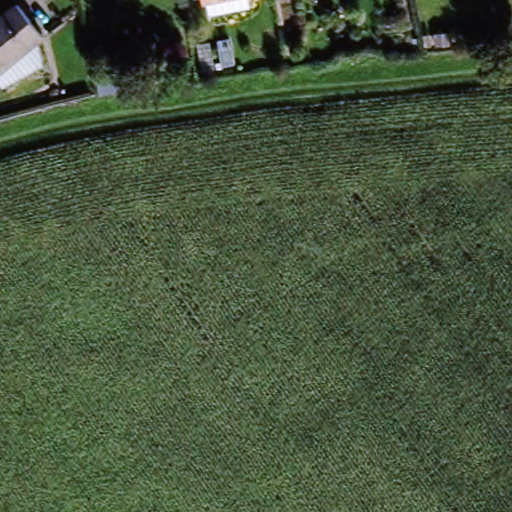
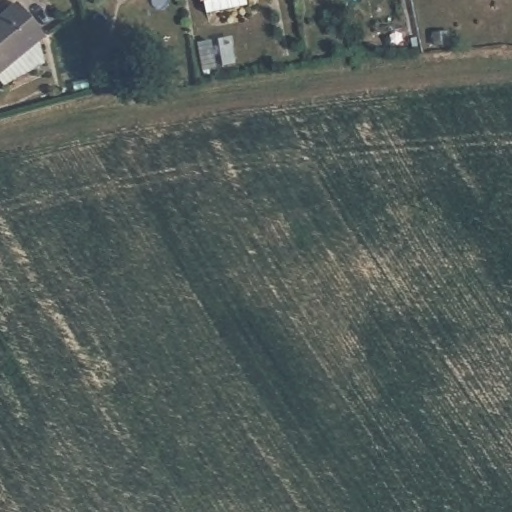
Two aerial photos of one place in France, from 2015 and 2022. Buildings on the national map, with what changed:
unchanged [(202,5),(200,0),(245,0),(248,14),(205,22),(202,5)]
unchanged [(38,35),(0,67),(0,16),(13,5),(38,35)]

